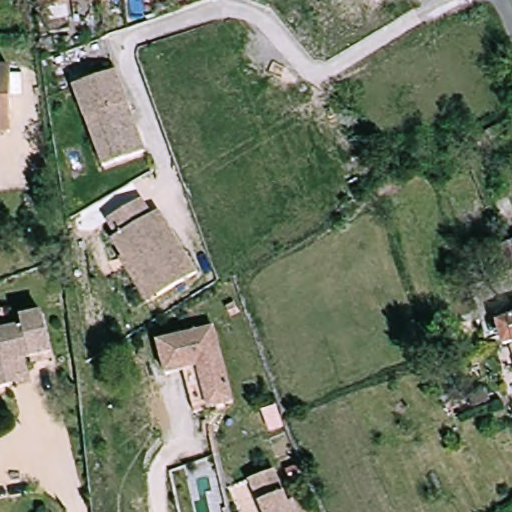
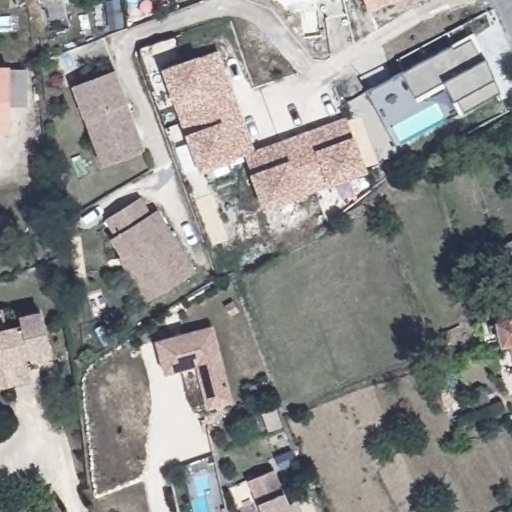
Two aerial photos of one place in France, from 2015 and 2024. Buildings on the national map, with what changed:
new [(400,0),(369,12),(364,0),(400,0)]
new [(403,72),(470,37),(480,64),(487,61),(496,81),(501,93),(463,113),(455,101),(446,86),(416,101),(403,72)]
new [(251,175),(245,157),(200,174),(164,69),(200,57),(219,52),(254,151),(348,117),(356,139),(368,174),(265,211),(251,175)]
unchanged [(0,69),(13,69),(12,119),(11,134),(0,134),(0,69)]
new [(416,101),(383,121),(368,91),(403,72),(416,101)]
unchanged [(88,121),(76,89),(117,74),(147,152),(119,163),(105,168),(88,121)]
unchanged [(125,262),(128,260),(116,242),(121,239),(111,222),(145,201),(155,217),(162,213),(200,273),(162,297),(152,304),(125,262)]
unchanged [(490,247),(507,241),(512,239),(512,267),(499,272),(490,247)]
unchanged [(26,321),(47,316),(58,361),(38,366),(36,361),(29,363),(32,375),(34,384),(22,387),(0,392),(0,337),(28,330),(26,321)]
unchanged [(485,323),(505,317),(506,319),(512,317),(512,339),(492,346),(485,323)]
unchanged [(191,374),(174,380),(164,347),(218,330),(243,403),(219,411),(205,416),(191,374)]
unchanged [(436,330),(438,336),(432,337),(430,332),(436,330)]
unchanged [(276,471),(291,505),(296,503),(299,512),(266,512),(253,481),(276,471)]

